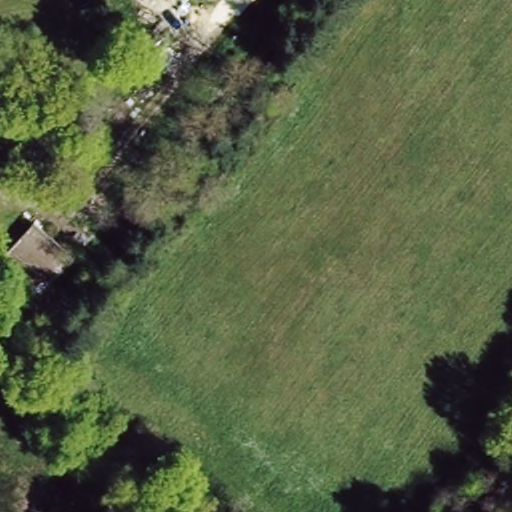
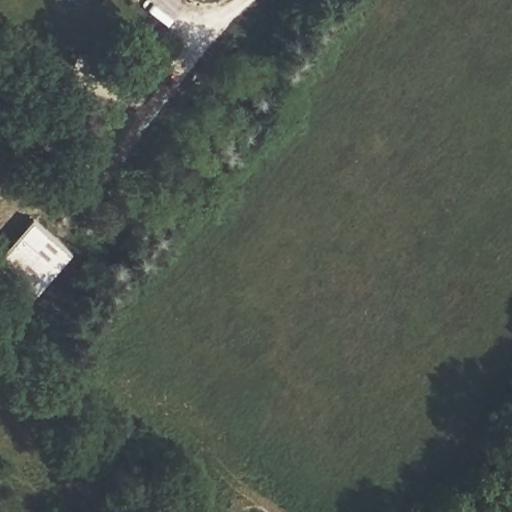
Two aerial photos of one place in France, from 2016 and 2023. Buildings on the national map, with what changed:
unchanged [(36,300),(0,263),(0,257),(34,219),(73,259),(36,300)]

